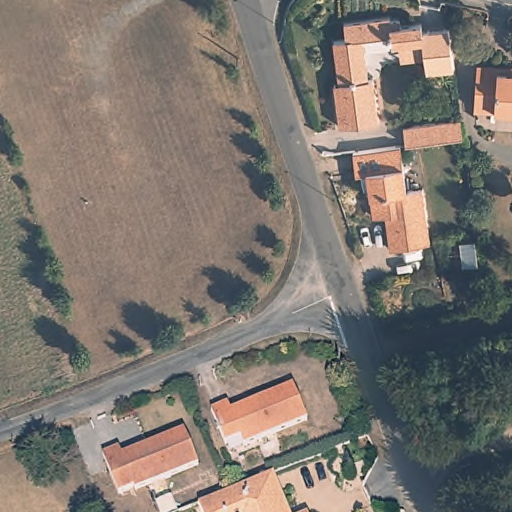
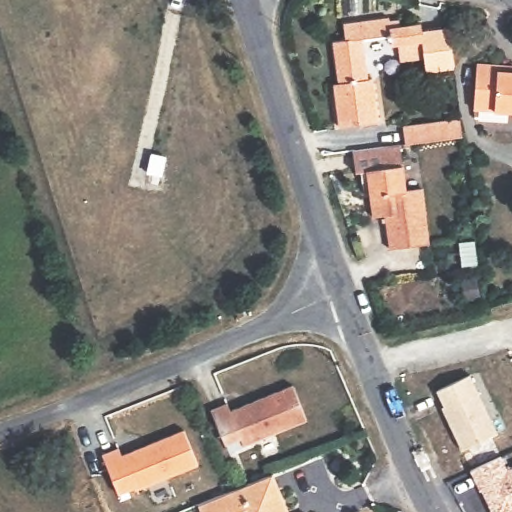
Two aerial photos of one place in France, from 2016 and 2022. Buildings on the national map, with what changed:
unchanged [(338,83),(333,41),(345,40),(343,24),(390,18),(390,21),(399,20),(400,26),(421,24),(423,41),(425,59),(400,62),(398,44),(391,45),(390,35),(362,39),(367,79),(372,79),(378,123),(340,128),(335,90),(333,84),(338,83)]
unchanged [(477,69),(478,63),(512,65),(512,112),(475,109),(477,69)]
unchanged [(445,121),(460,119),(462,137),(447,139),(406,144),(403,128),(445,121)]
unchanged [(400,145),(406,191),(422,189),(430,245),(390,250),(385,217),(373,218),(366,172),(356,174),(353,151),(400,145)]
new [(470,375),(497,433),(462,449),(442,408),(444,406),(437,391),(470,375)]
unchanged [(244,446),(240,439),(225,445),(211,410),(227,404),(230,412),(293,386),(307,421),(244,446)]
unchanged [(102,455),(118,449),(121,457),(184,431),(198,466),(135,491),(134,488),(118,494),(102,455)]
new [(508,469),(512,466),(512,512),(491,512),(470,471),(501,454),(508,469)]
unchanged [(197,505),(272,474),(288,512),(200,512),(197,505)]

